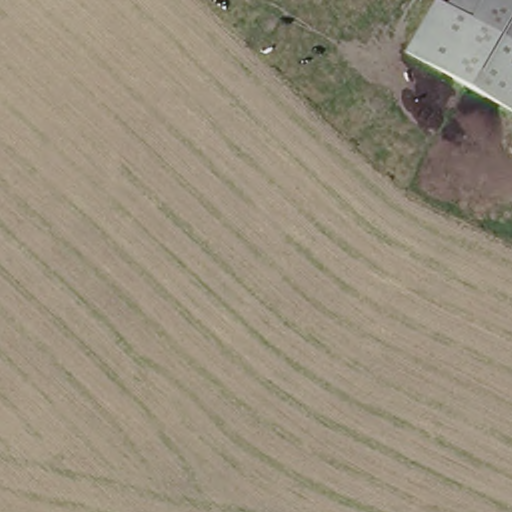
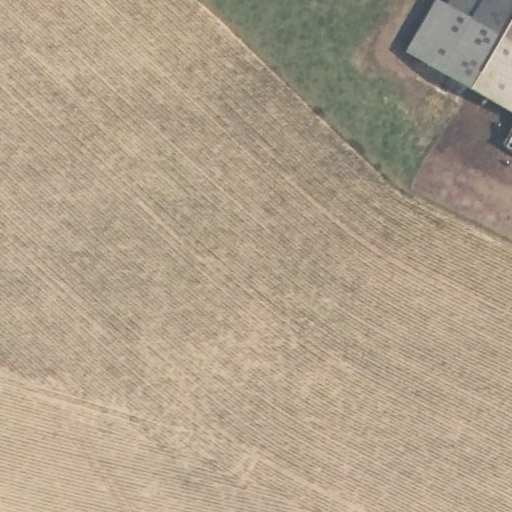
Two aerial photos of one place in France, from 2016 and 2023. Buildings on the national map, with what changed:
unchanged [(512,39),(512,109),(404,49),(434,0),(444,0),(455,7),(481,22),(512,39)]
unchanged [(455,7),(459,0),(494,0),(481,22),(455,7)]
unchanged [(494,0),(512,0),(512,39),(481,22),(494,0)]

